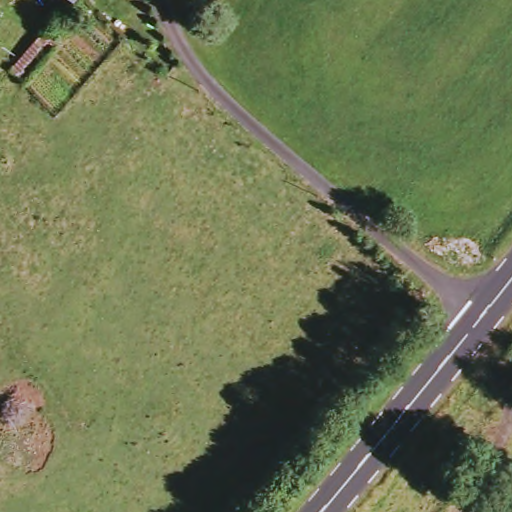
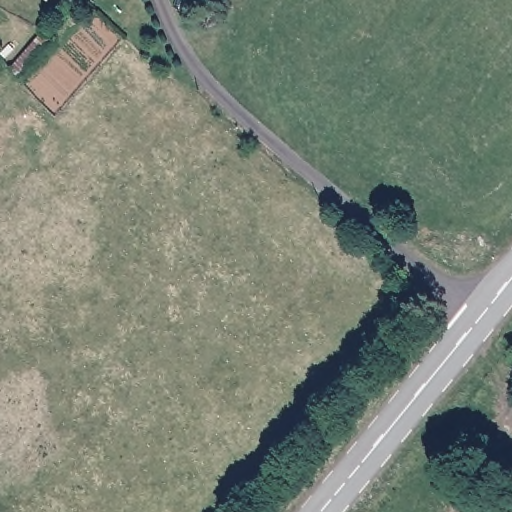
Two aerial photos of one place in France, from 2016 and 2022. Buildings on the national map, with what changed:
unchanged [(40,33),(55,44),(23,80),(9,66),(40,33)]

